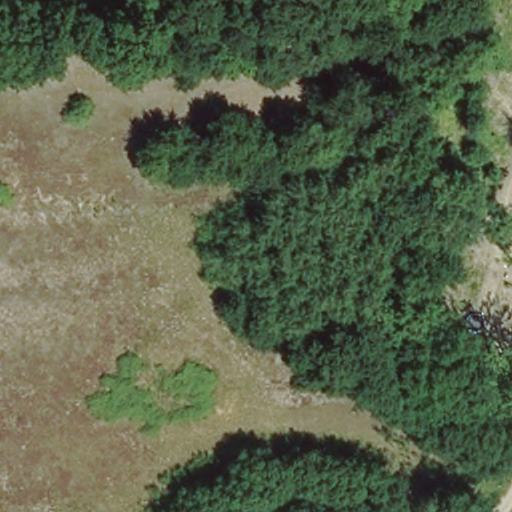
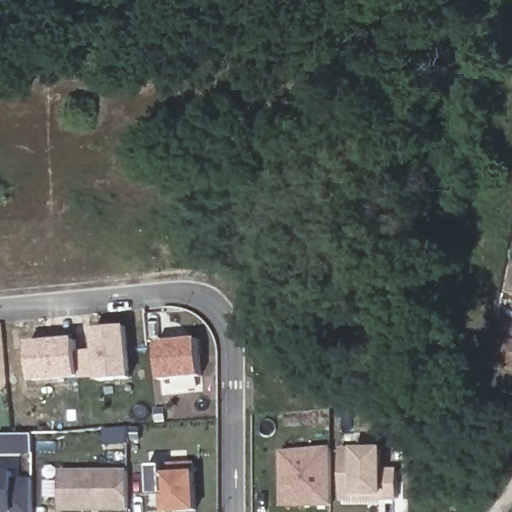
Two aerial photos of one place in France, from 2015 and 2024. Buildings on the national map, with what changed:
new [(96,351),(94,329),(124,326),(129,378),(98,381),(98,375),(77,377),(75,353),(96,351)]
new [(196,340),(200,380),(165,383),(161,344),(196,340)]
new [(74,374),(29,380),(26,346),(71,341),(74,374)]
new [(338,451),(379,450),(379,472),(395,472),(395,501),(338,501),(338,451)]
new [(279,453),(328,453),(328,504),(279,504),(279,453)]
new [(188,512),(149,512),(147,464),(197,462),(198,472),(200,512),(188,512)]
new [(61,512),(60,470),(128,469),(129,511),(61,512)]
new [(7,481),(27,481),(27,487),(27,510),(7,510),(7,512),(0,512),(0,474),(7,474),(7,481)]

